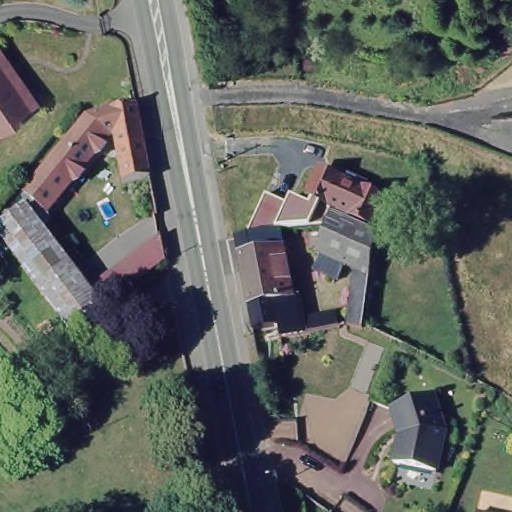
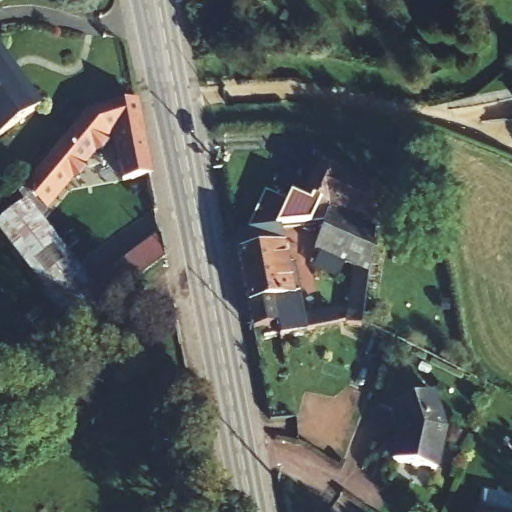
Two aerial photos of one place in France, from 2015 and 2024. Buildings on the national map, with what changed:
unchanged [(7,68),(37,109),(0,134),(0,50),(10,65),(7,68)]
unchanged [(108,107),(135,101),(150,176),(123,180),(113,134),(107,135),(43,208),(20,189),(87,114),(108,107)]
unchanged [(313,174),(319,163),(383,191),(371,219),(305,190),(313,174)]
unchanged [(322,197),(310,224),(280,224),(249,229),(265,193),(285,204),(293,192),(307,199),(311,192),(322,197)]
unchanged [(38,285),(0,235),(0,224),(25,205),(90,292),(102,306),(72,328),(38,285)]
unchanged [(320,250),(315,246),(325,220),(328,206),(374,227),(362,316),(360,322),(346,320),(354,265),(345,261),(338,276),(313,265),(320,250)]
unchanged [(280,224),(287,261),(295,260),(304,313),(335,307),(337,321),(280,330),(278,319),(253,323),(235,231),(280,224)]
unchanged [(108,276),(161,236),(165,257),(102,306),(90,292),(108,276)]
unchanged [(436,390),(447,428),(438,468),(397,458),(403,431),(395,403),(436,390)]

